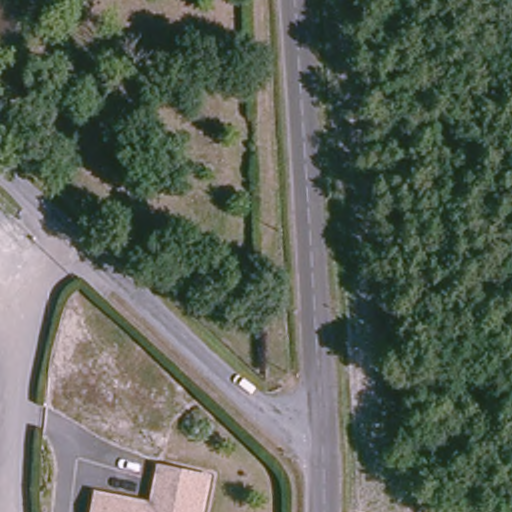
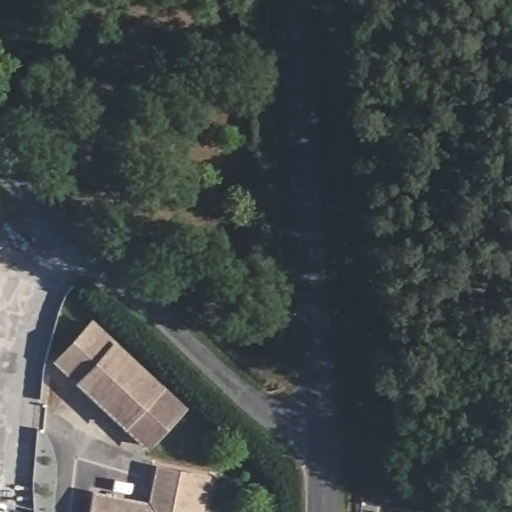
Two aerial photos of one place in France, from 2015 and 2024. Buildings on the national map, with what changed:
new [(124,429),(74,383),(51,361),(91,319),(115,341),(164,386),(188,406),(146,449),(124,429)]
unchanged [(104,493),(118,496),(157,504),(166,469),(198,477),(210,480),(202,512),(89,512),(93,490),(104,493)]
demolished [(1,499),(0,502),(0,499),(1,499)]

